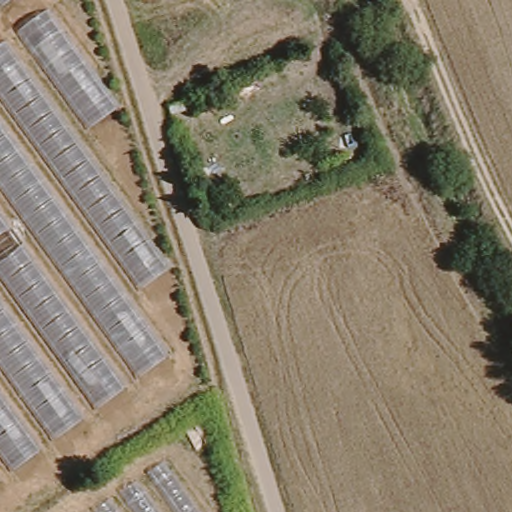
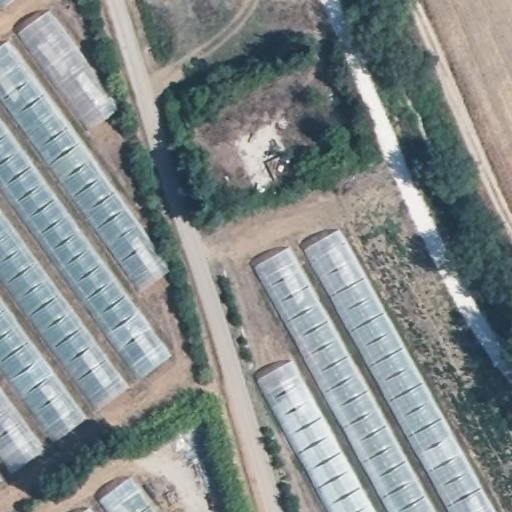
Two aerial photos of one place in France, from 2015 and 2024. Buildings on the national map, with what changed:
unchanged [(176,278),(141,300),(173,363),(0,491),(0,0),(39,0),(122,124),(93,140),(176,278)]
new [(512,432),(512,512),(329,512),(256,381),(303,355),(253,266),(384,202),(512,432)]
unchanged [(138,477),(162,512),(87,512),(138,477)]

